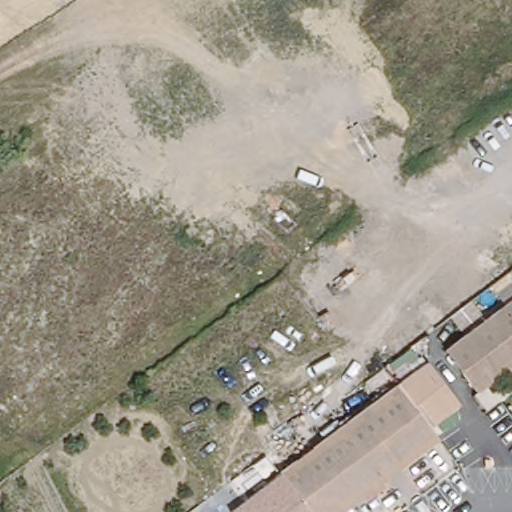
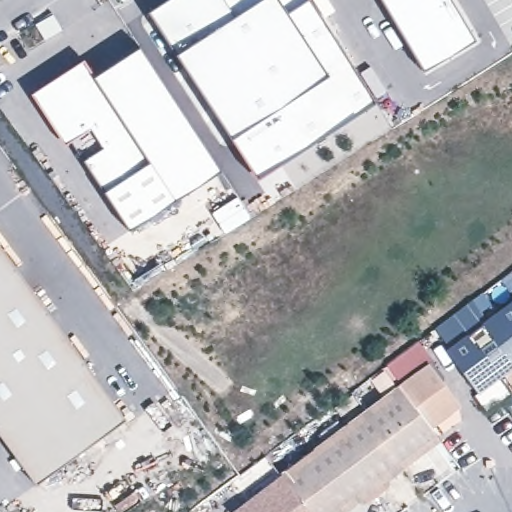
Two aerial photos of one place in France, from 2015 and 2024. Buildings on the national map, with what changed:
new [(159,0),(284,0),(331,71),(233,136),(147,7),(148,7),(159,0)]
new [(331,71),(284,0),(310,0),(375,100),(258,178),(231,137),(233,136),(331,71)]
new [(476,33),(424,65),(385,0),(456,0),(476,33)]
new [(75,70),(81,81),(95,72),(140,42),(224,167),(132,228),(72,139),(41,93),(75,70)]
new [(84,55),(95,72),(81,81),(75,70),(41,93),(72,139),(66,142),(32,90),(84,55)]
new [(237,195),(250,216),(224,233),(210,213),(237,195)]
new [(38,483),(0,432),(0,249),(125,420),(38,483)]
unchanged [(497,373),(472,392),(440,350),(512,297),(512,393),(497,373)]
unchanged [(422,360),(452,399),(423,422),(393,381),(422,360)]
unchanged [(233,512),(232,511),(283,477),(276,467),(393,381),(423,422),(432,435),(329,512),(233,512)]

